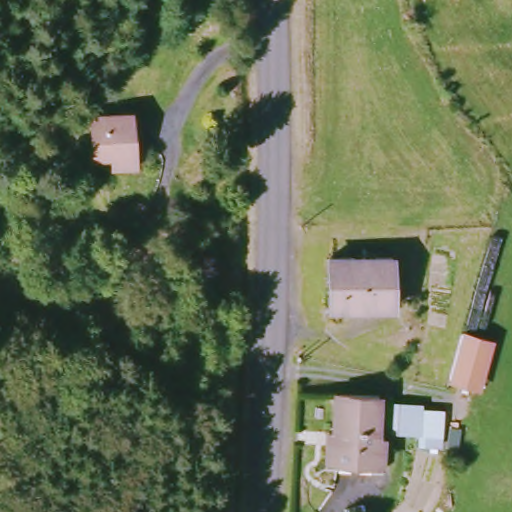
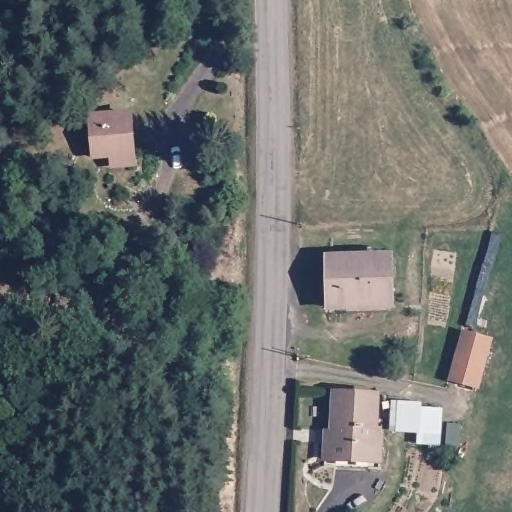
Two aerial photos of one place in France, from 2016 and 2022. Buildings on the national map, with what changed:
unchanged [(133,161),(109,163),(108,152),(104,152),(87,152),(84,111),(102,111),(124,109),(125,127),(132,126),(133,161)]
unchanged [(389,257),(388,309),(324,307),(324,256),(389,257)]
unchanged [(479,390),(446,380),(460,329),(492,339),(479,390)]
unchanged [(378,431),(383,431),(382,465),(322,461),(323,429),(330,429),(331,389),(380,392),(378,431)]
unchanged [(442,407),(440,447),(415,447),(416,433),(389,432),(389,401),(420,402),(442,407)]

